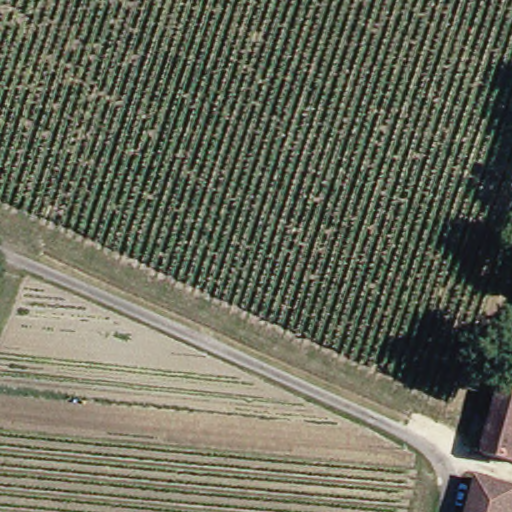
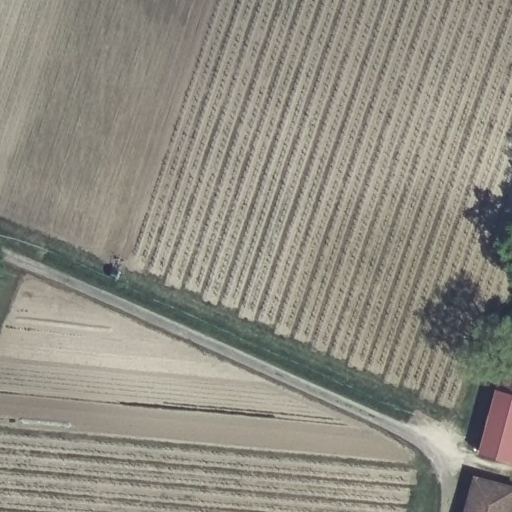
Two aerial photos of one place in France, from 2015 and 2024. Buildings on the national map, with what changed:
unchanged [(512,369),(512,421),(497,417),(509,368),(512,369)]
unchanged [(497,417),(512,421),(512,461),(488,455),(497,417)]
unchanged [(512,482),(512,512),(472,512),(482,474),(512,482)]

